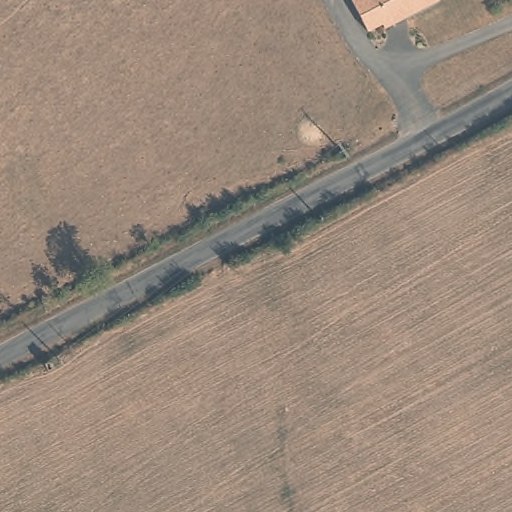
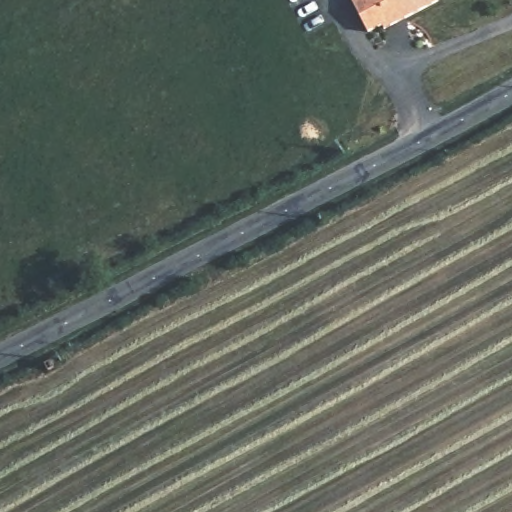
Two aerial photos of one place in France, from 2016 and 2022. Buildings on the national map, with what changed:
unchanged [(351,6),(362,0),(436,0),(440,9),(393,35),(390,30),(370,41),(351,6)]

